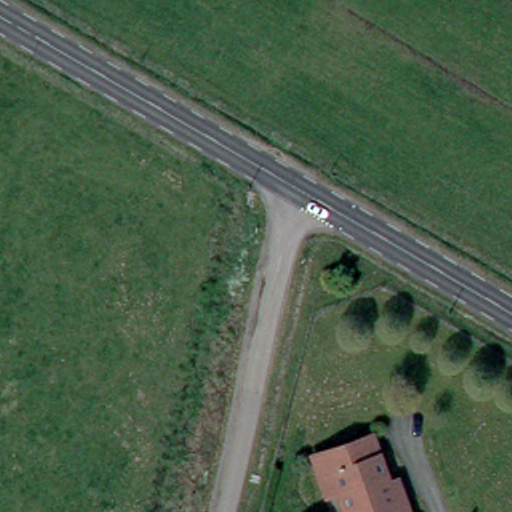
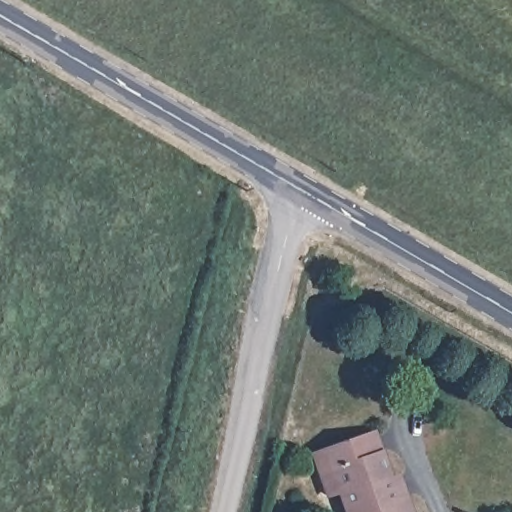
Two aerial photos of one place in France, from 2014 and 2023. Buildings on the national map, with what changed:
unchanged [(336,491),(321,494),(306,454),(368,434),(384,477),(393,474),(401,494),(404,504),(407,512),(345,512),(336,491)]

